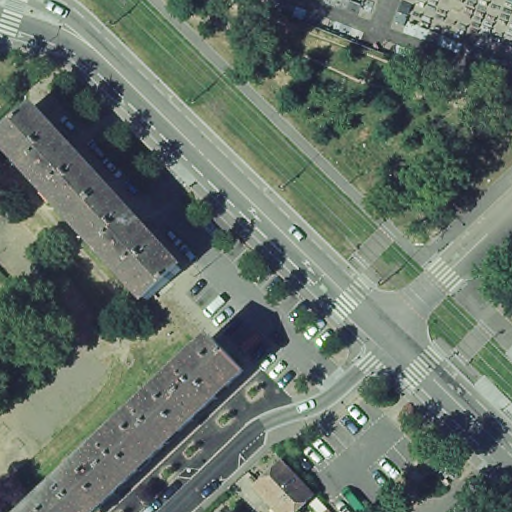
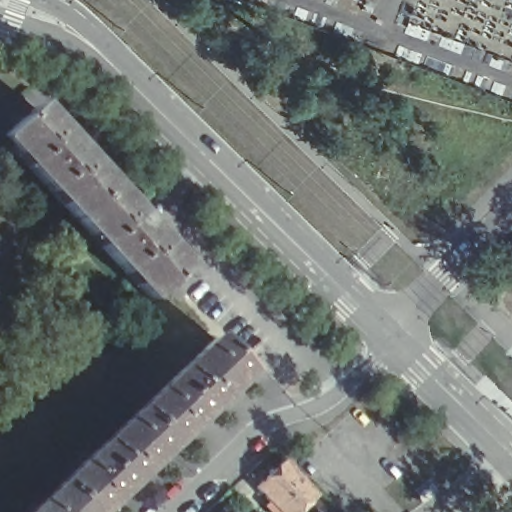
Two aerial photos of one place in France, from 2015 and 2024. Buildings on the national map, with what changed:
unchanged [(109,189),(75,220),(0,138),(35,107),(109,189)]
unchanged [(183,270),(150,301),(75,220),(109,189),(183,270)]
unchanged [(215,338),(245,371),(167,445),(136,412),(215,338)]
unchanged [(96,512),(83,512),(58,485),(136,412),(167,445),(96,512)]
unchanged [(297,512),(279,512),(256,488),(284,461),(315,495),(297,512)]
unchanged [(83,512),(30,512),(58,485),(83,512)]
unchanged [(221,512),(220,512),(220,511),(221,512)]

